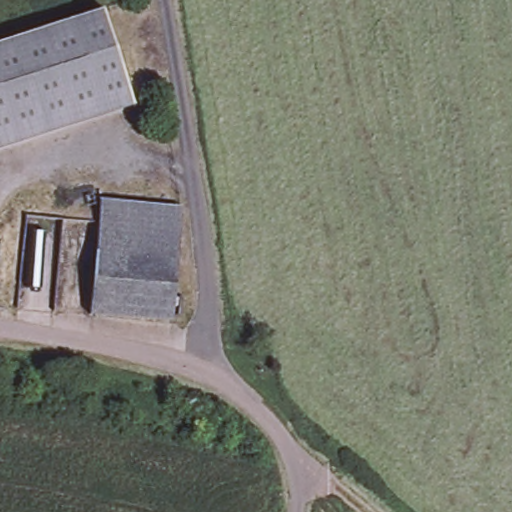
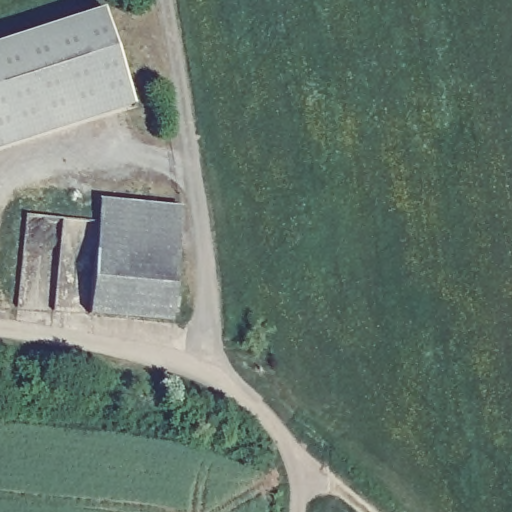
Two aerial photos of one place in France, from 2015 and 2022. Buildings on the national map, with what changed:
unchanged [(136,105),(0,150),(0,43),(103,9),(136,105)]
unchanged [(94,308),(103,202),(175,209),(183,209),(181,241),(177,312),(94,308)]

